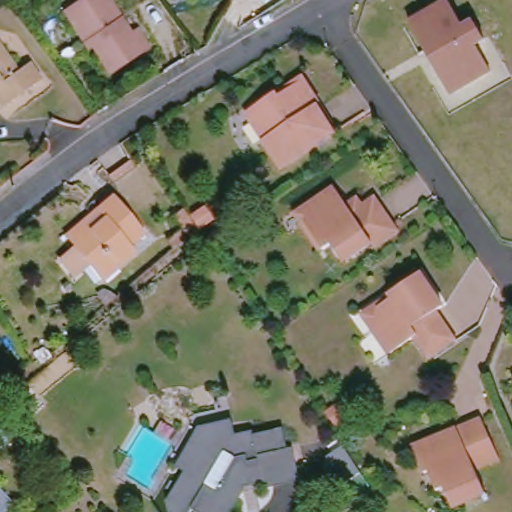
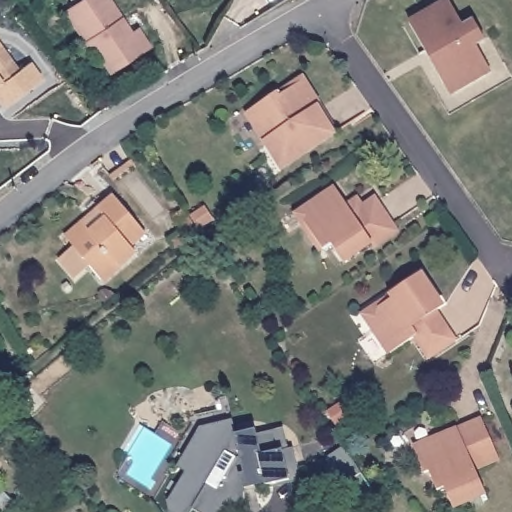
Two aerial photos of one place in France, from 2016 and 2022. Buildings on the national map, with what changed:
unchanged [(151,50),(145,54),(114,76),(90,42),(86,45),(65,13),(84,0),(106,0),(132,34),(137,31),(151,50)]
unchanged [(432,63),(437,60),(433,53),(428,56),(412,26),(451,5),(467,32),(477,26),(487,44),(479,49),(492,75),(469,88),(451,97),(445,86),(432,63)]
unchanged [(35,65),(49,82),(11,109),(0,94),(0,37),(25,72),(35,65)]
unchanged [(253,111),(277,95),(280,99),(305,83),(317,101),(312,104),(315,109),(320,107),(337,134),(280,170),(262,143),(245,116),(253,111)]
unchanged [(334,242),(327,247),(309,221),(313,204),(340,187),(350,201),(357,197),(363,205),(379,195),(402,229),(377,246),(374,242),(347,260),(334,242)]
unchanged [(60,264),(75,252),(107,224),(100,215),(116,202),(144,237),(129,250),(132,256),(98,283),(88,270),(74,282),(60,264)]
unchanged [(202,232),(194,239),(177,218),(186,211),(202,232)]
unchanged [(446,310),(433,320),(437,326),(445,321),(460,343),(432,363),(416,341),(395,355),(373,324),(367,315),(392,298),(424,276),(446,310)]
unchanged [(454,506),(445,488),(439,491),(430,472),(425,474),(415,448),(452,431),(455,436),(461,433),(459,429),(484,418),(501,459),(477,470),(487,493),(454,506)]
unchanged [(175,503),(175,500),(177,499),(190,478),(186,475),(199,454),(197,442),(217,438),(216,431),(233,427),(237,442),(254,438),(254,441),(283,436),(287,453),(294,453),(300,482),(265,489),(262,476),(242,480),(242,491),(230,512),(170,512),(168,505),(175,503)]
unchanged [(0,512),(0,486),(21,512),(0,512)]

